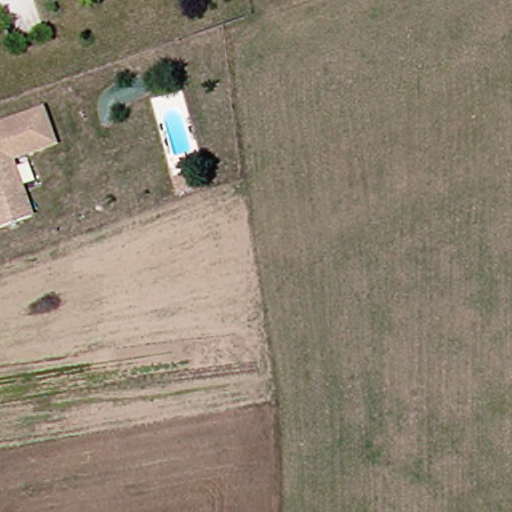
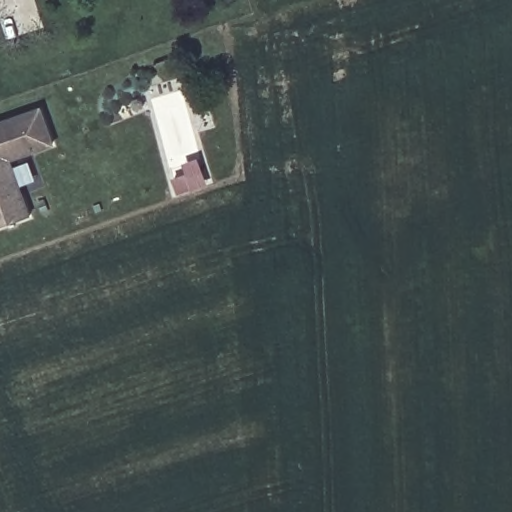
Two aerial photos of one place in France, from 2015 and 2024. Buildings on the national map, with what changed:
unchanged [(45,121),(53,141),(10,156),(31,215),(0,227),(0,138),(45,121)]
unchanged [(199,185),(195,186),(185,190),(179,173),(193,168),(199,185)]

